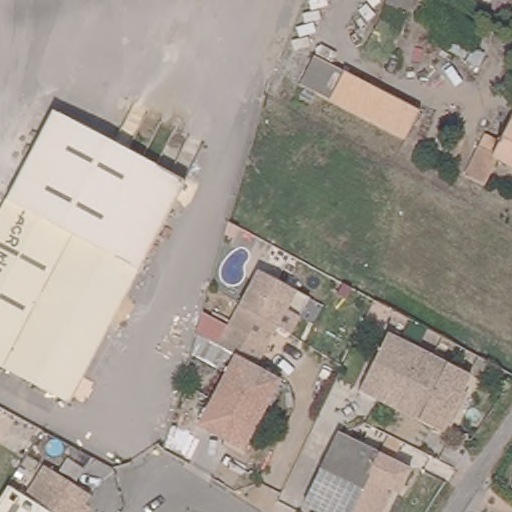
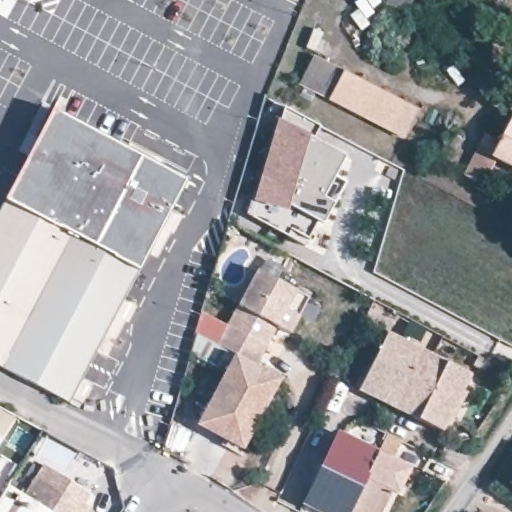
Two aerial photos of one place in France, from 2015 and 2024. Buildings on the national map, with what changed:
unchanged [(345,104),(298,80),(313,52),(360,77),(345,104)]
unchanged [(416,106),(402,134),(345,104),(360,77),(416,106)]
new [(288,106),(328,127),(321,141),(353,158),(341,178),(352,184),(330,225),(321,220),(308,244),(255,215),(288,106)]
unchanged [(0,370),(0,194),(44,111),(176,180),(60,402),(0,370)]
unchanged [(490,155),(512,114),(512,166),(490,155)]
unchanged [(276,326),(255,365),(233,353),(218,345),(259,271),(295,291),(310,300),(301,318),(291,334),(276,326)]
unchanged [(359,389),(389,332),(429,352),(470,372),(441,429),(359,389)]
unchanged [(194,422),(193,422),(196,417),(233,353),(255,365),(278,378),(241,443),(238,448),(194,422)]
unchanged [(351,511),(351,512),(327,512),(306,500),(341,432),(403,463),(412,468),(400,492),(394,490),(383,512),(352,512),(351,511)]
unchanged [(19,493),(36,466),(81,494),(78,499),(85,503),(80,512),(0,512),(0,485),(2,482),(19,493)]
unchanged [(502,485),(512,469),(512,492),(502,485)]

